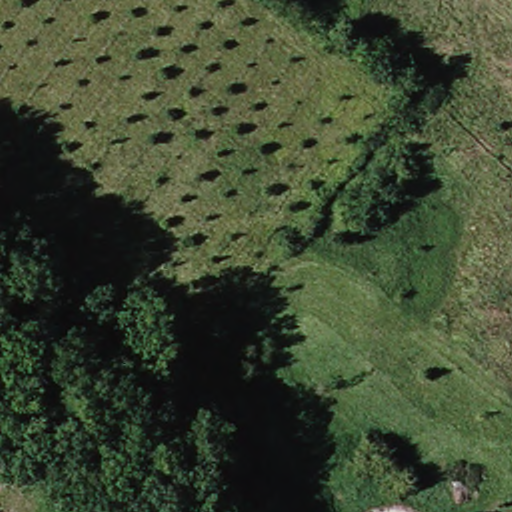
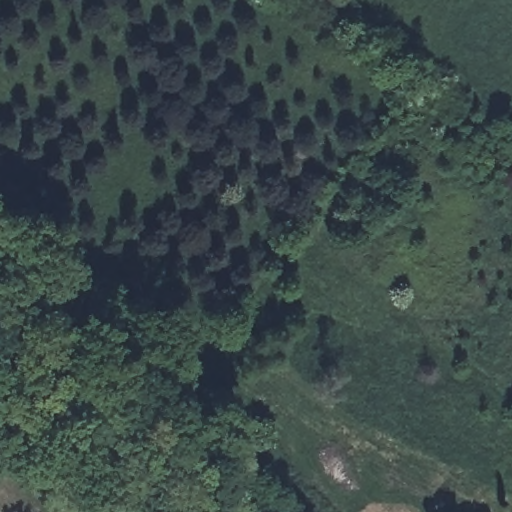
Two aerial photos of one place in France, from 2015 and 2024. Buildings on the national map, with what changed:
unchanged [(328,512),(300,512),(304,503),(328,512)]

